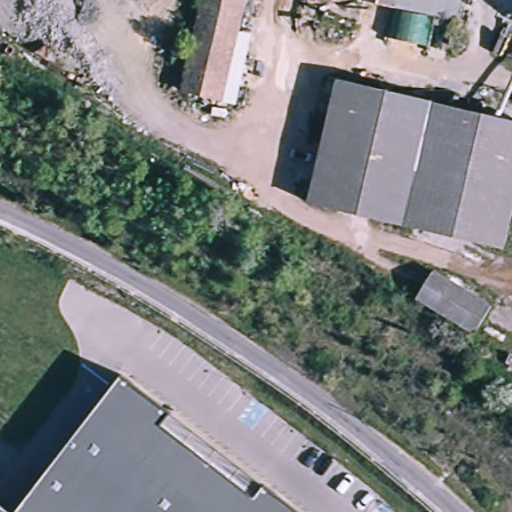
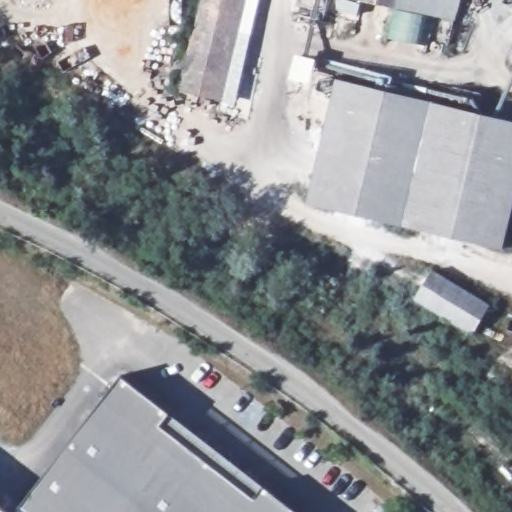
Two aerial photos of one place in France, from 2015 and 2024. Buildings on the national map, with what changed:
unchanged [(180,91),(200,0),(251,0),(228,102),(180,91)]
unchanged [(433,14),(427,47),(394,41),(401,13),(347,0),(462,0),(459,16),(433,14)]
unchanged [(512,122),(512,210),(504,251),(308,207),(334,81),(512,122)]
unchanged [(413,302),(429,276),(487,311),(470,338),(413,302)]
unchanged [(123,376),(297,512),(19,512),(123,376)]
unchanged [(0,505),(9,512),(0,512),(0,505)]

